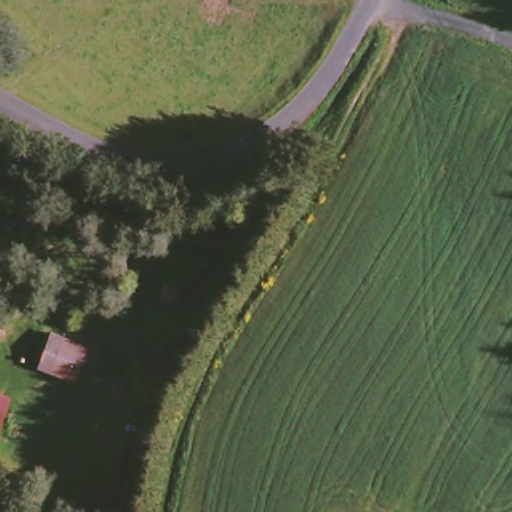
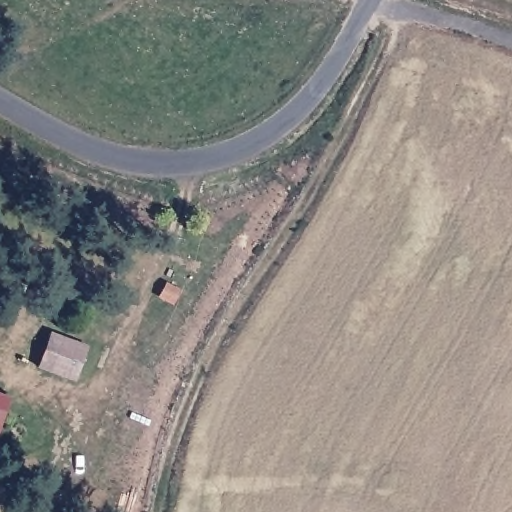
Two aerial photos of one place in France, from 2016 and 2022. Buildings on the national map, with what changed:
unchanged [(46,330),(82,342),(71,380),(31,370),(46,330)]
unchanged [(8,394),(0,415),(0,392),(8,394)]

